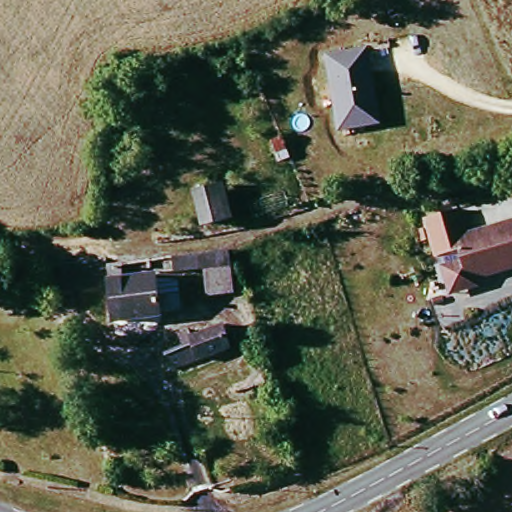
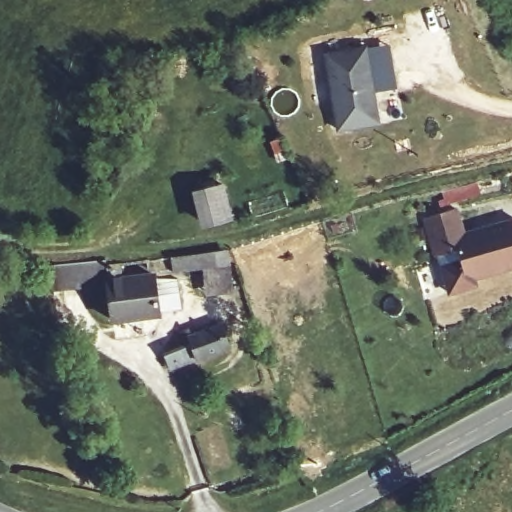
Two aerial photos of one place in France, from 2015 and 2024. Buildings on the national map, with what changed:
unchanged [(325,53),(368,45),(381,119),(336,127),(325,53)]
unchanged [(208,212),(202,181),(223,177),(229,208),(208,212)]
unchanged [(462,265),(459,252),(437,259),(427,220),(458,211),(465,238),(512,225),(512,266),(500,269),(502,274),(473,281),(475,289),(450,295),(443,270),(462,265)]
unchanged [(201,270),(170,272),(169,255),(228,249),(228,292),(203,295),(201,270)]
unchanged [(109,259),(111,275),(93,280),(94,287),(46,290),(47,266),(109,259)]
unchanged [(156,320),(128,327),(106,333),(94,287),(93,280),(111,275),(146,267),(156,320)]
unchanged [(169,354),(164,339),(178,335),(182,343),(218,328),(226,351),(164,373),(158,359),(169,354)]

